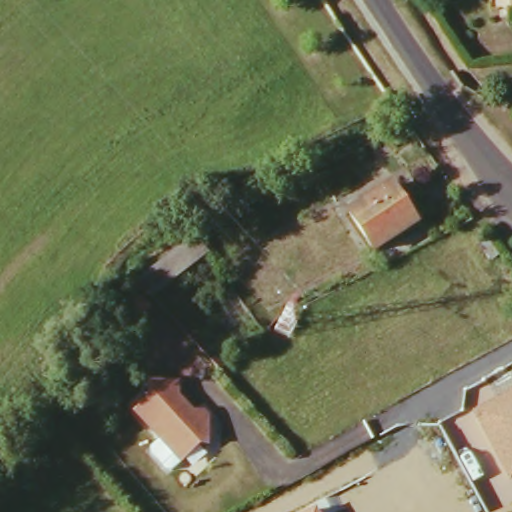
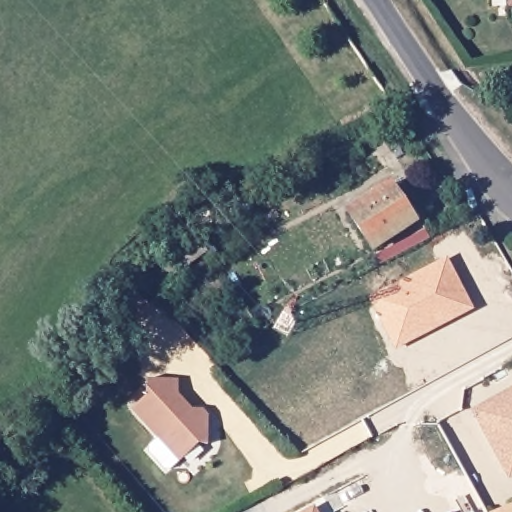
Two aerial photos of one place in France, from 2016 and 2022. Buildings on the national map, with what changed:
unchanged [(507,0),(512,0),(512,4),(508,5),(507,0)]
unchanged [(348,210),(388,181),(414,218),(374,247),(348,210)]
new [(406,328),(459,303),(439,261),(448,257),(472,307),(410,337),(406,328)]
new [(369,294),(439,261),(459,303),(406,328),(410,337),(393,344),(369,294)]
unchanged [(207,422),(206,448),(198,447),(146,391),(146,382),(178,382),(178,400),(188,412),(199,412),(207,422)]
unchanged [(133,412),(146,400),(146,391),(198,447),(179,464),(133,412)]
unchanged [(511,481),(477,411),(512,393),(512,480),(511,481)]
unchanged [(317,512),(301,512),(313,505),(317,512)]
unchanged [(504,509),(504,512),(497,512),(504,509)]

